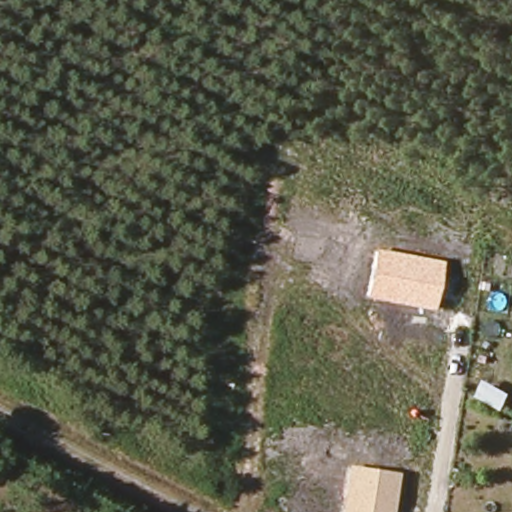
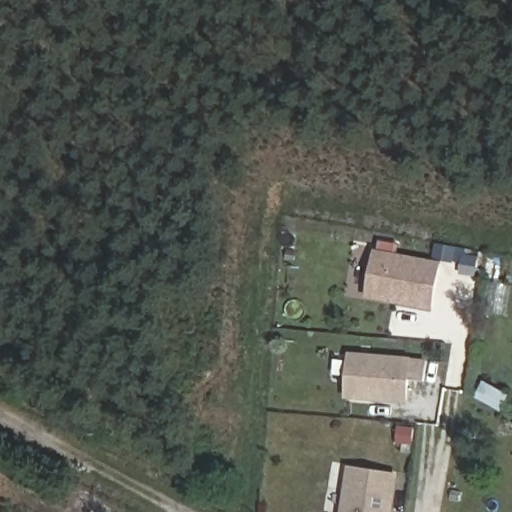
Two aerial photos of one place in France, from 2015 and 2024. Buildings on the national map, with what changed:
unchanged [(434,310),(366,298),(374,249),(443,261),(434,310)]
new [(428,381),(412,381),(409,403),(346,398),(349,351),(414,357),(429,358),(428,381)]
unchanged [(343,512),(350,464),(399,472),(393,512),(343,512)]

